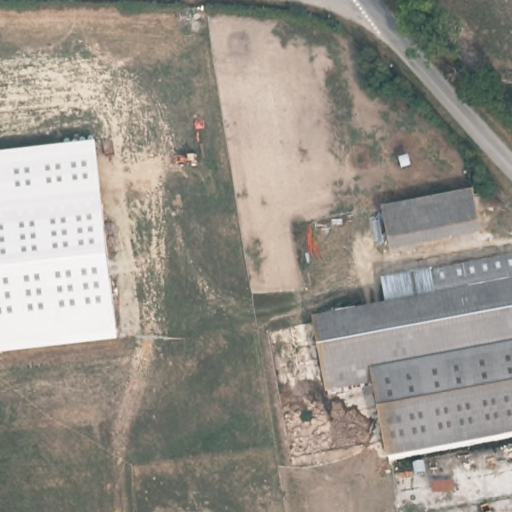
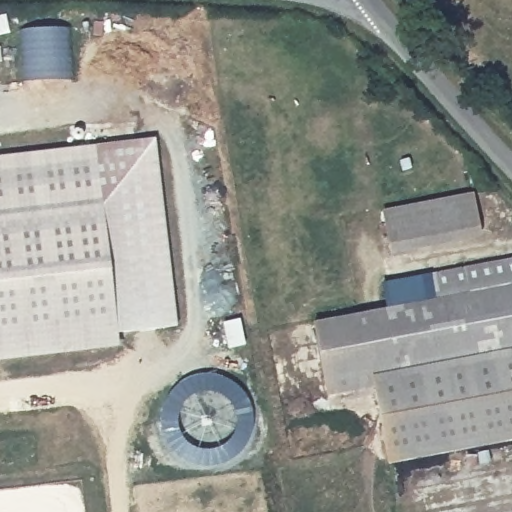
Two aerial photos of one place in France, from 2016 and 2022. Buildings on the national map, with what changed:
new [(21,29),(68,27),(71,80),(22,81),(21,29)]
new [(95,145),(155,138),(176,326),(117,333),(95,145)]
unchanged [(119,347),(0,360),(0,155),(95,145),(119,347)]
unchanged [(390,243),(382,211),(471,193),(478,226),(390,243)]
unchanged [(481,237),(392,255),(390,243),(478,226),(481,237)]
unchanged [(428,302),(424,277),(512,260),(512,438),(391,463),(376,389),(331,397),(315,325),(387,311),(428,302)]
unchanged [(383,287),(424,277),(428,302),(387,311),(383,287)]

